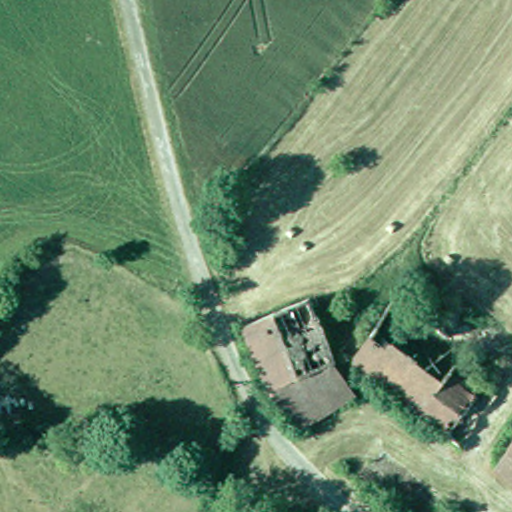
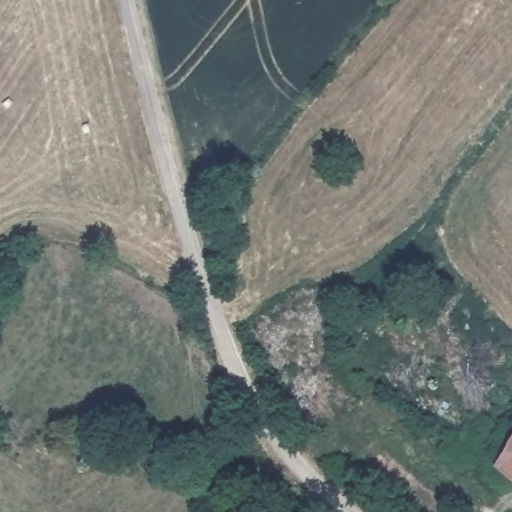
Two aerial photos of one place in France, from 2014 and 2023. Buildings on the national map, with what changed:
unchanged [(512,475),(500,465),(512,449),(512,475)]

